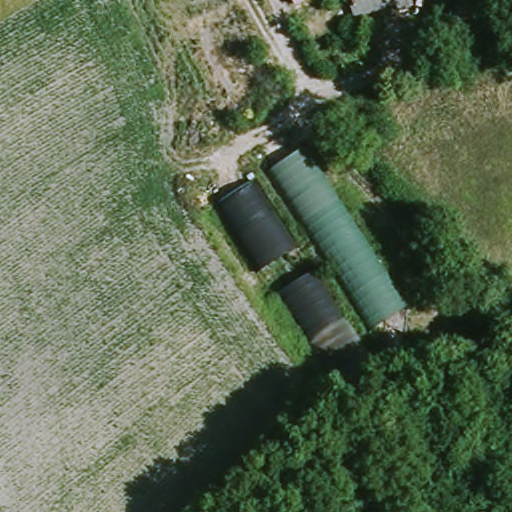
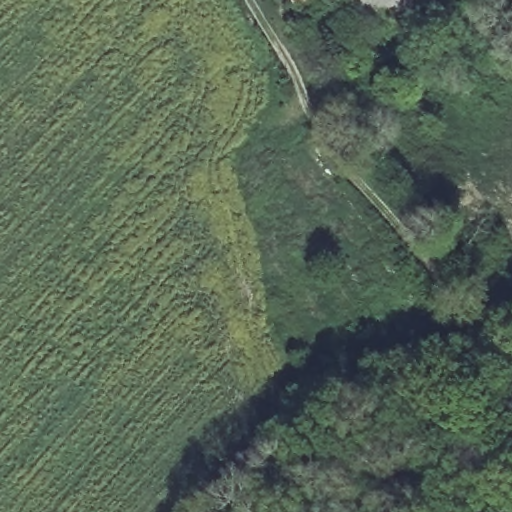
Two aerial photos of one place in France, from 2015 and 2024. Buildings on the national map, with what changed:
unchanged [(275,24),(270,2),(279,0),(292,0),(297,16),(275,24)]
unchanged [(391,18),(388,9),(385,7),(345,20),(340,0),(408,0),(408,1),(400,3),(403,14),(391,18)]
demolished [(408,301),(373,328),(276,169),(312,145),(408,301)]
demolished [(222,209),(257,184),(298,250),(262,273),(222,209)]
demolished [(370,356),(333,379),(285,293),(316,273),(370,356)]

